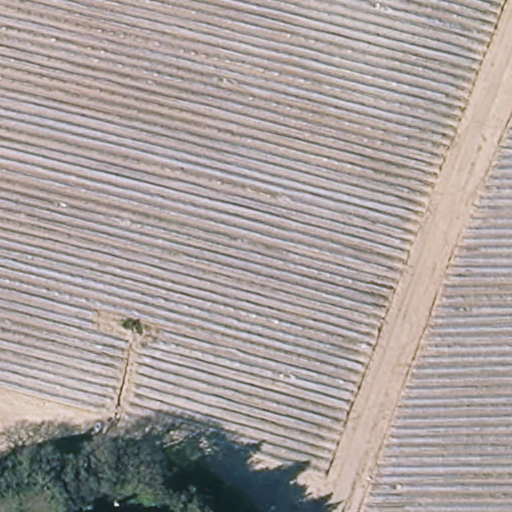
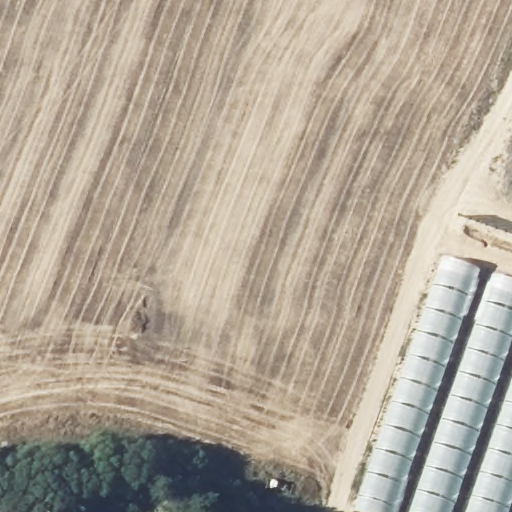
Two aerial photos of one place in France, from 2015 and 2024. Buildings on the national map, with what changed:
new [(512,278),(512,512),(359,512),(352,510),(444,255),(512,278)]

